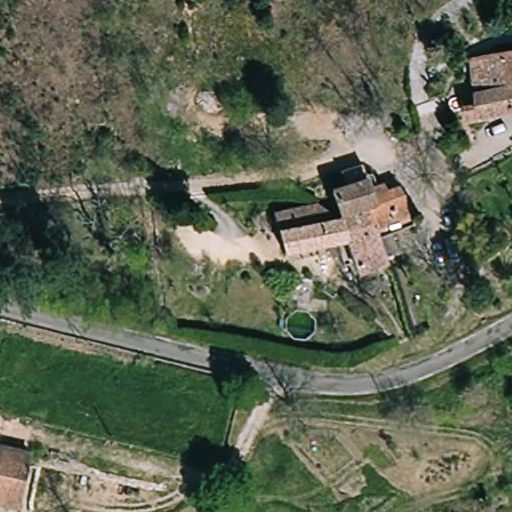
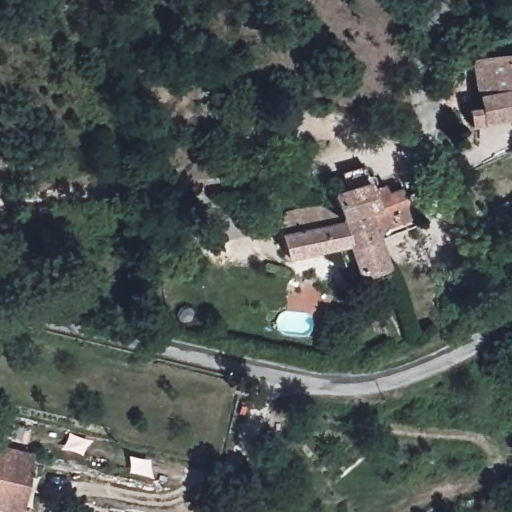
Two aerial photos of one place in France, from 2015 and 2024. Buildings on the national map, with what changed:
unchanged [(470,97),(480,97),(474,53),(512,50),(512,111),(473,115),(470,97)]
unchanged [(351,244),(289,251),(281,207),(300,205),(318,202),(335,200),(334,188),(373,177),(375,185),(400,181),(409,214),(384,217),(388,238),(378,239),(381,251),(385,271),(357,273),(353,254),(351,244)]
unchanged [(14,443),(7,499),(0,498),(0,440),(14,443)]

